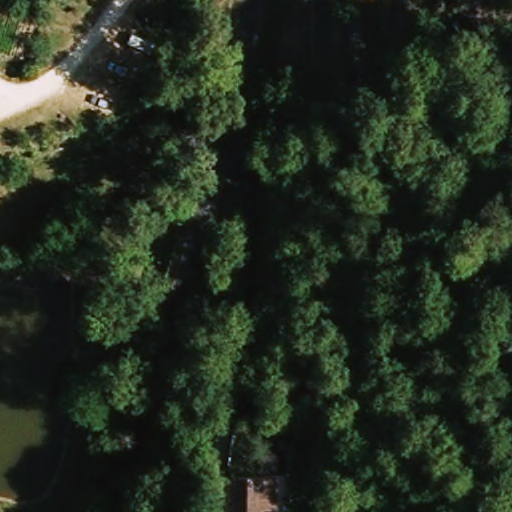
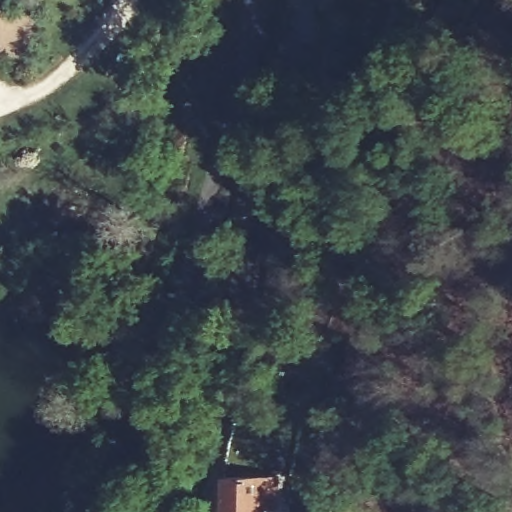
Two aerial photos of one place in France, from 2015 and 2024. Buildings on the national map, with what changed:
unchanged [(421,43),(415,68),(400,65),(405,38),(421,43)]
unchanged [(263,484),(277,485),(276,504),(262,504),(262,512),(228,512),(229,483),(263,484)]

